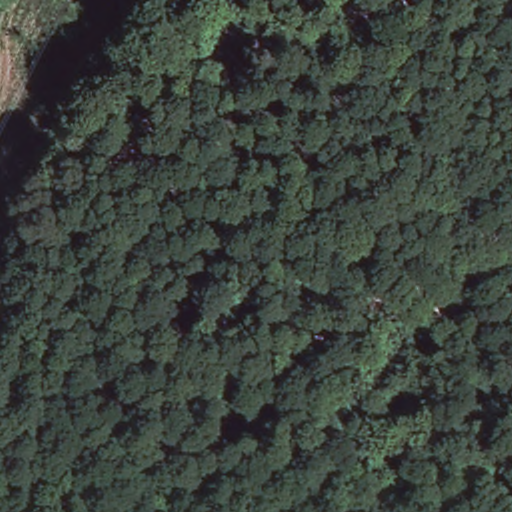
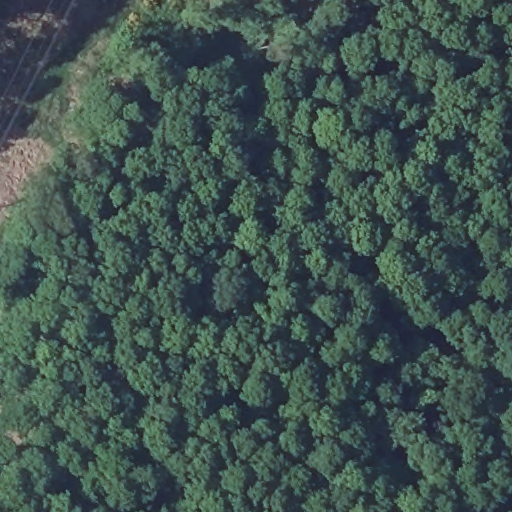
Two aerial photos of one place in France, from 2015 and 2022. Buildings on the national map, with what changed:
[]

